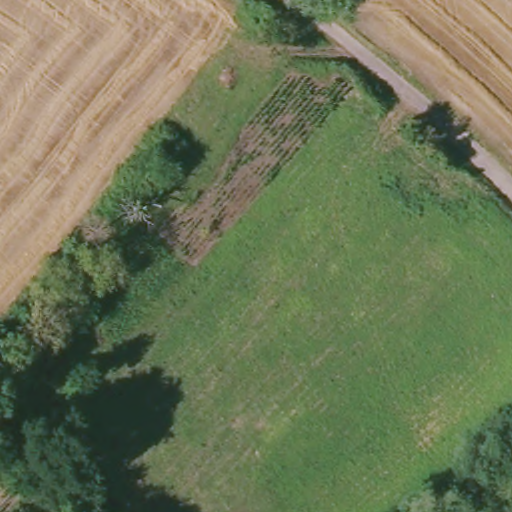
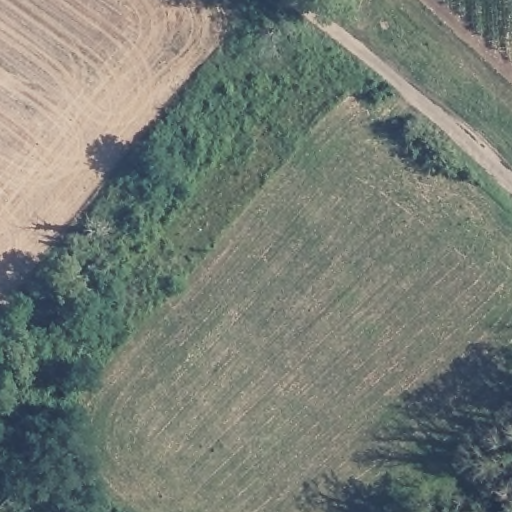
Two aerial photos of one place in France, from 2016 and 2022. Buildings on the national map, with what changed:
[]

